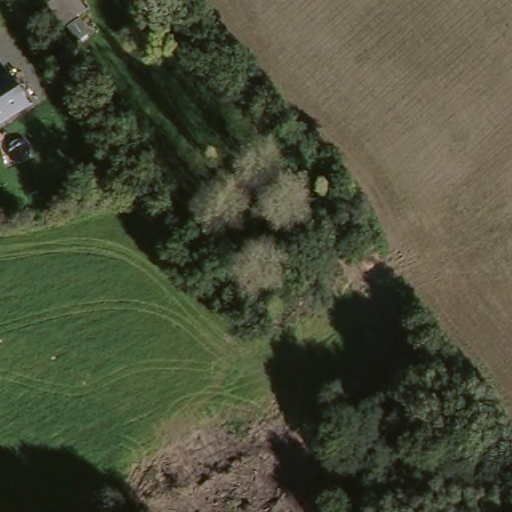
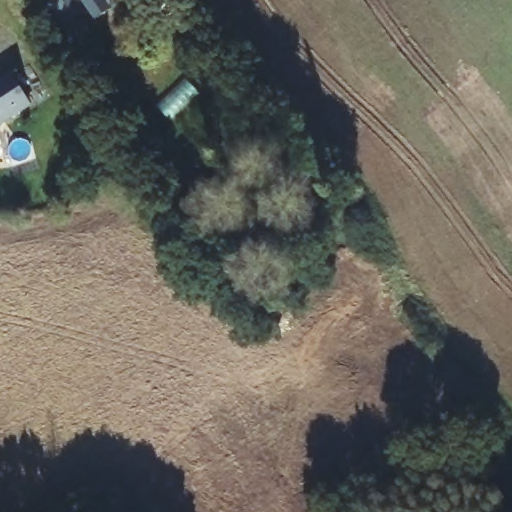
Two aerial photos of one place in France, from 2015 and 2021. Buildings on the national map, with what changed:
unchanged [(83,14),(65,25),(51,5),(59,0),(74,0),(83,14)]
unchanged [(33,105),(0,124),(0,83),(14,75),(33,105)]

